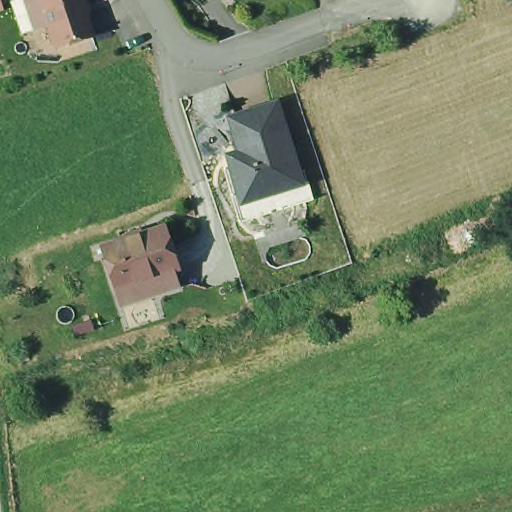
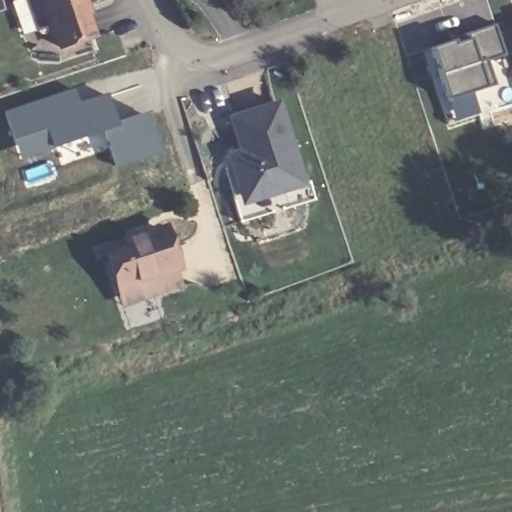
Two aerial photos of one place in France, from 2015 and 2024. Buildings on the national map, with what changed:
new [(0,12),(0,0),(4,0),(7,10),(0,12)]
unchanged [(88,17),(86,17),(94,41),(60,52),(59,47),(56,48),(51,32),(53,31),(53,29),(38,34),(27,1),(31,0),(80,0),(83,0),(88,17)]
new [(495,27),(504,54),(488,60),(498,85),(452,100),(434,48),(495,27)]
unchanged [(288,170),(286,164),(246,175),(238,145),(249,142),(240,112),(236,97),(283,84),(304,154),(308,165),(288,170)]
new [(74,87),(79,101),(107,93),(116,121),(144,112),(161,155),(115,171),(99,134),(20,161),(3,111),(74,87)]
unchanged [(245,201),(229,148),(238,145),(246,175),(286,164),(288,170),(308,165),(314,162),(319,180),(245,201)]
unchanged [(116,288),(103,247),(161,229),(167,249),(179,285),(174,287),(121,305),(116,288)]

